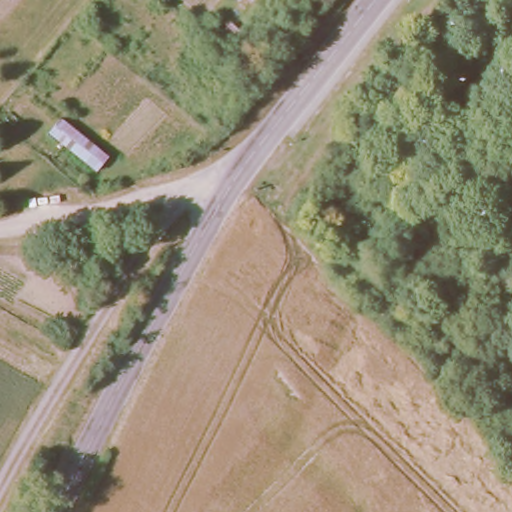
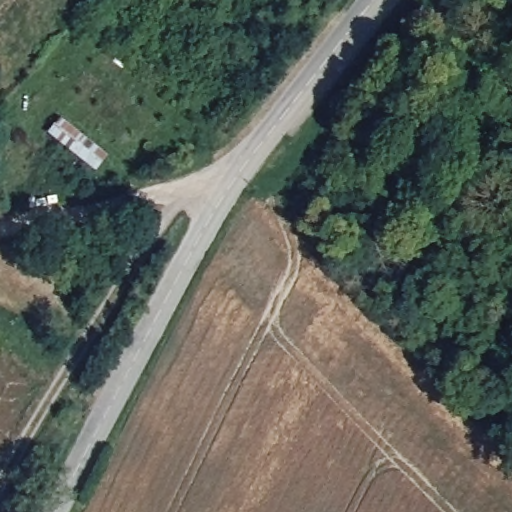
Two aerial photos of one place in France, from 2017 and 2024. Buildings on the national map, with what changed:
unchanged [(109,155),(96,170),(47,128),(58,112),(109,155)]
unchanged [(103,240),(118,249),(108,225),(121,220),(133,243),(126,254),(115,269),(93,254),(103,240)]

